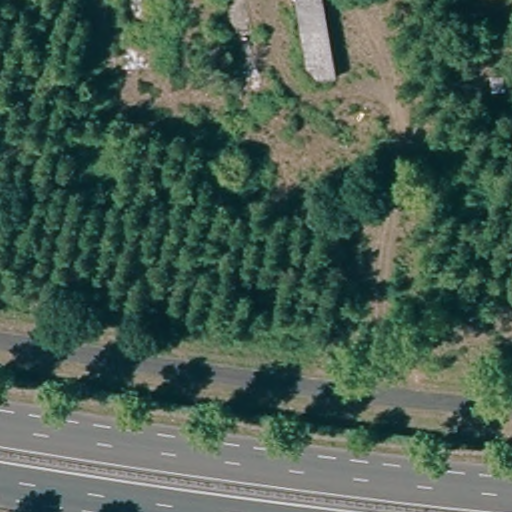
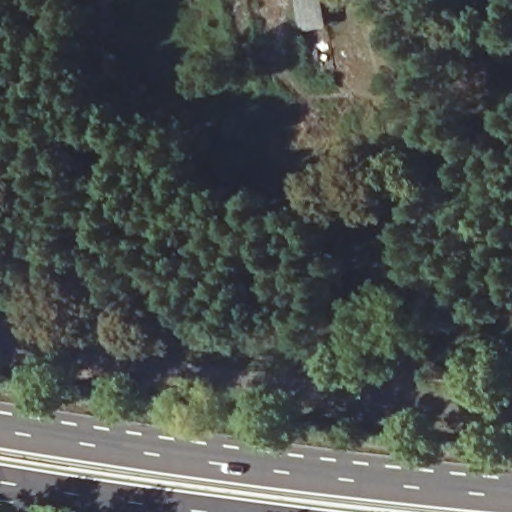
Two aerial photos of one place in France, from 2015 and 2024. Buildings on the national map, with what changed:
unchanged [(342,78),(313,85),(300,0),(328,0),(342,78)]

